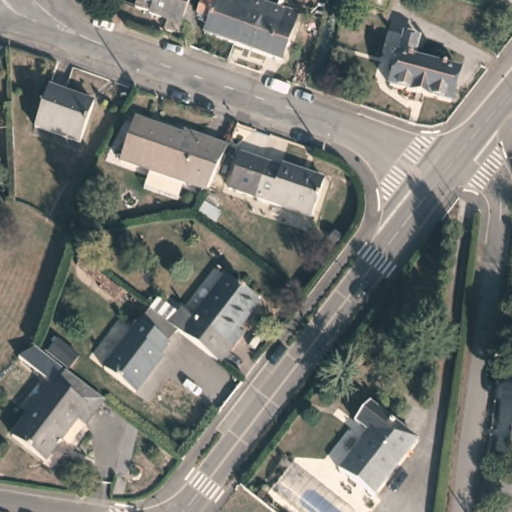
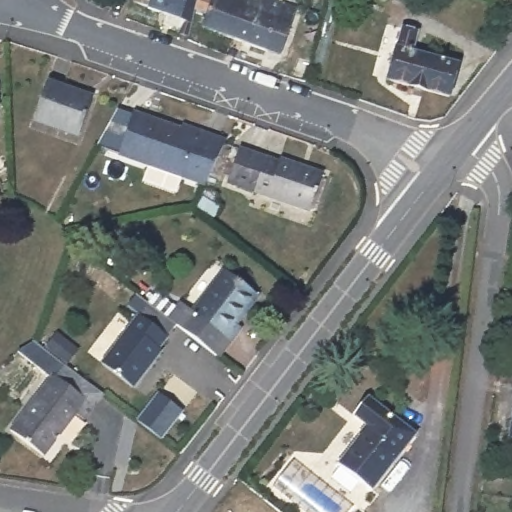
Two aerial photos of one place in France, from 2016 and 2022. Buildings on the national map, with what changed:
unchanged [(145,10),(145,7),(131,2),(132,0),(197,0),(194,11),(187,36),(177,33),(178,31),(161,25),(164,16),(145,10)]
unchanged [(203,17),(195,15),(196,12),(194,11),(197,0),(246,0),(233,39),(200,27),(203,17)]
unchanged [(276,0),(277,1),(295,7),(278,56),(233,39),(246,0),(276,0)]
unchanged [(389,0),(388,5),(375,0),(389,0)]
unchanged [(391,80),(405,29),(420,34),(416,45),(421,54),(461,65),(452,97),(391,80)]
unchanged [(79,136),(34,121),(47,82),(92,98),(79,136)]
unchanged [(205,184),(120,154),(134,115),(183,131),(184,129),(225,142),(205,184)]
unchanged [(311,211),(227,182),(239,150),(281,164),(282,160),(323,173),(311,211)]
unchanged [(176,324),(170,318),(180,302),(192,312),(225,271),(259,296),(238,324),(242,327),(220,356),(176,324)]
unchanged [(176,324),(158,347),(161,351),(135,386),(104,362),(149,302),(170,318),(176,324)]
unchanged [(82,419),(75,414),(42,456),(10,430),(52,374),(55,377),(65,365),(104,393),(82,419)]
new [(153,395),(177,412),(156,440),(132,421),(153,395)]
unchanged [(374,490),(341,465),(370,426),(356,416),(368,397),(416,433),(374,490)]
unchanged [(508,437),(512,403),(512,437),(508,437)]

